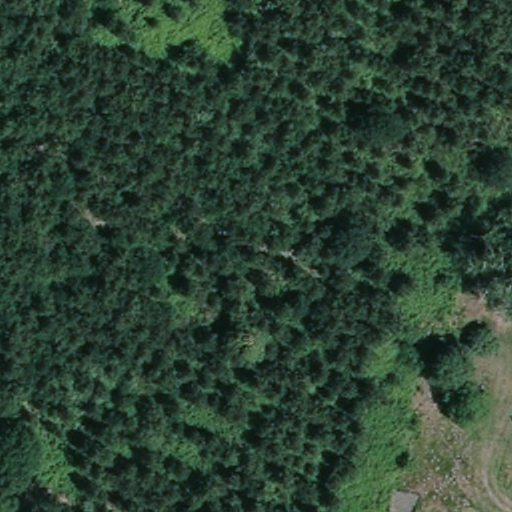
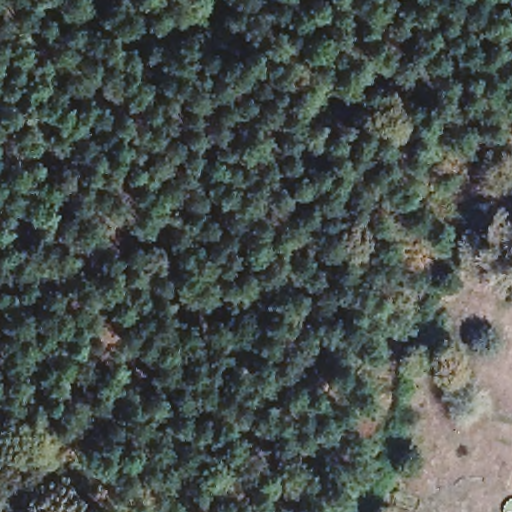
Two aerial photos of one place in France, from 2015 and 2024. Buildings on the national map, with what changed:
[]

